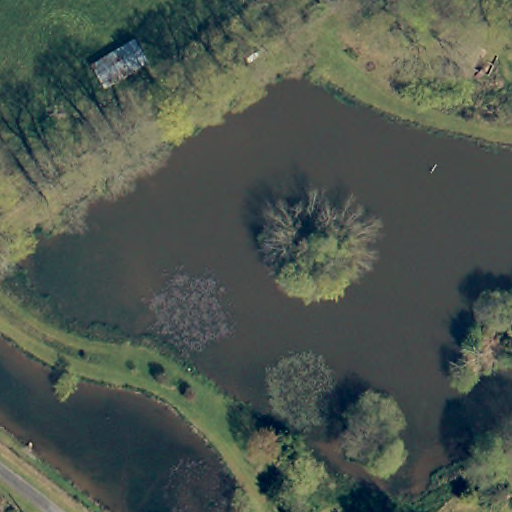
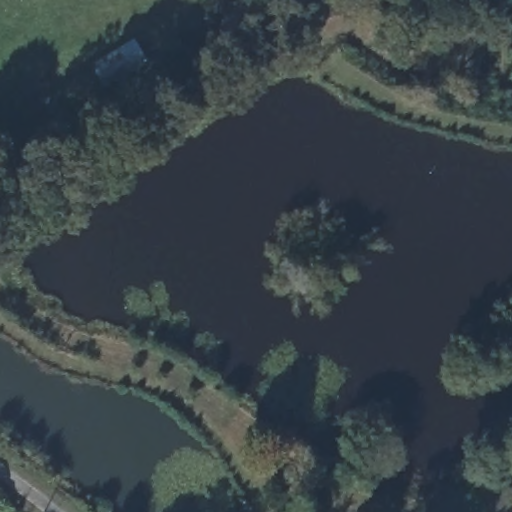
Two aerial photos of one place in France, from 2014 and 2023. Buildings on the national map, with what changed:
unchanged [(136,66),(108,83),(95,61),(122,44),(136,66)]

